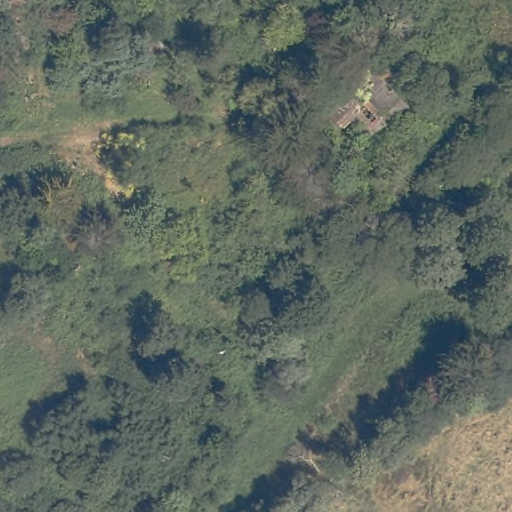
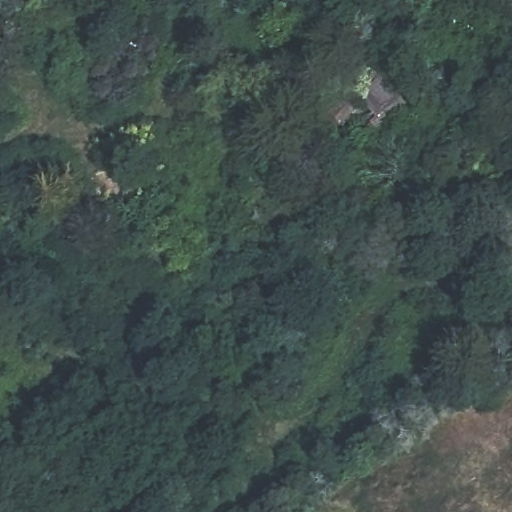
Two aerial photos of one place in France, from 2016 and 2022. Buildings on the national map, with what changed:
unchanged [(371,135),(354,115),(342,125),(320,107),(373,54),(396,72),(387,83),(406,102),(371,135)]

